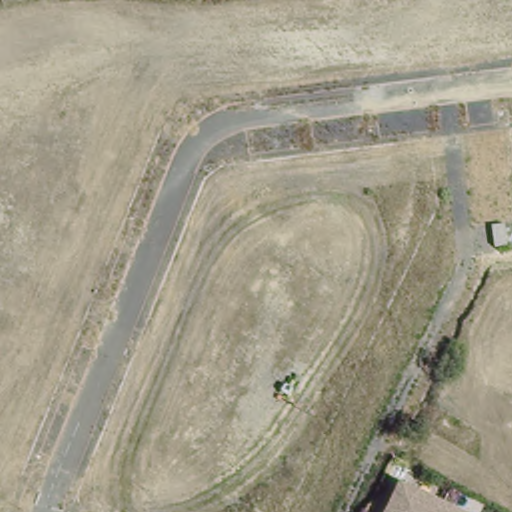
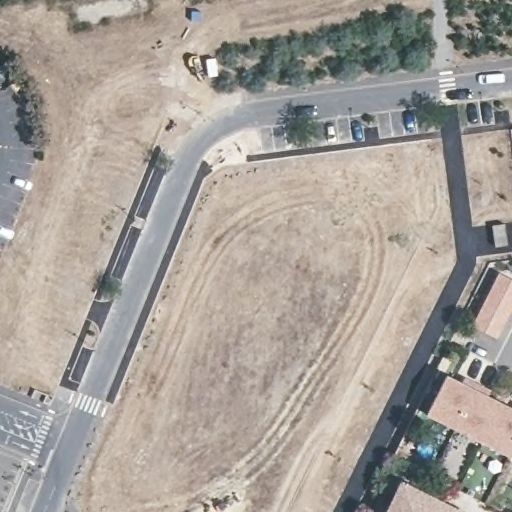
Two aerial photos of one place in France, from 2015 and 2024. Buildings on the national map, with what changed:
new [(495,247),(492,221),(504,220),(508,245),(495,247)]
new [(498,277),(512,284),(512,310),(498,338),(474,326),(498,277)]
new [(449,376),(455,380),(463,383),(465,378),(478,384),(456,429),(429,415),(449,376)]
new [(478,384),(491,391),(488,396),(502,403),(483,443),(456,429),(478,384)]
new [(502,403),(512,408),(512,452),(509,456),(483,443),(502,403)]
new [(512,452),(512,458),(509,456),(512,452)]
unchanged [(461,512),(382,512),(397,479),(461,512)]

